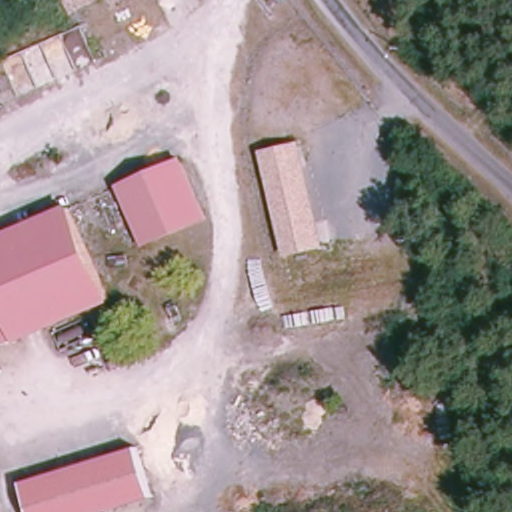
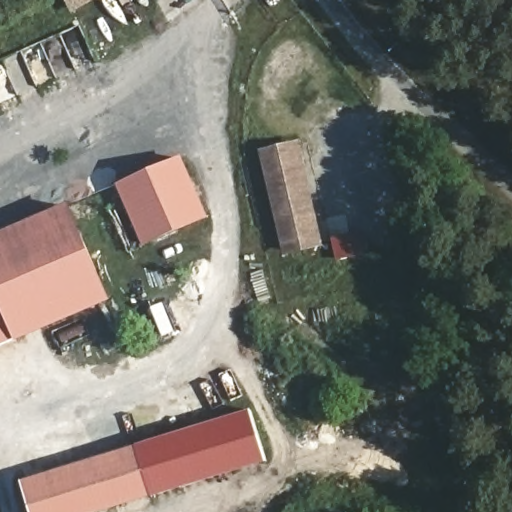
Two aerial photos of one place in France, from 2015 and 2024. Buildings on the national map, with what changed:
unchanged [(95,7),(75,16),(67,0),(92,0),(95,7)]
unchanged [(320,246),(281,256),(268,204),(265,195),(254,149),(294,141),(320,246)]
unchanged [(182,160),(205,219),(140,243),(121,182),(182,160)]
unchanged [(0,341),(0,235),(74,207),(110,302),(0,341)]
new [(250,410),(267,462),(153,498),(139,450),(136,446),(250,410)]
unchanged [(153,498),(154,501),(104,512),(30,512),(21,479),(139,450),(153,498)]

